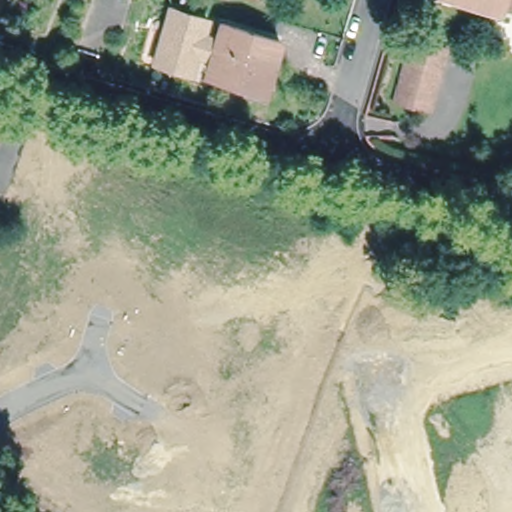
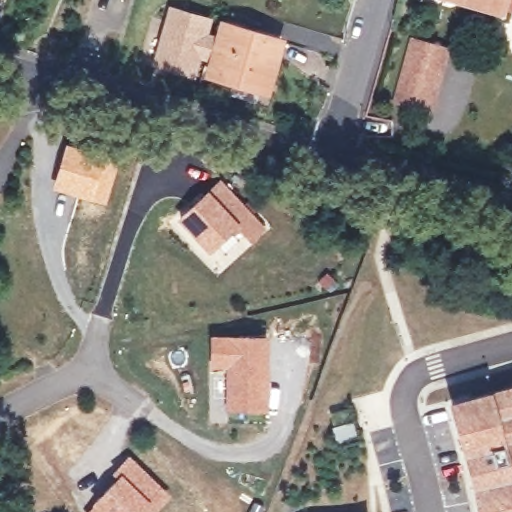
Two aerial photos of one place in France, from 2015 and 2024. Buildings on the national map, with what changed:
unchanged [(497,1),(493,0),(497,0),(497,1)]
unchanged [(512,3),(499,0),(512,0),(512,3)]
new [(214,16),(209,33),(217,33),(220,18),(286,37),(271,95),(204,76),(208,60),(200,58),(195,77),(153,66),(170,5),(214,16)]
demolished [(210,68),(223,23),(282,41),(267,90),(223,77),(224,72),(210,68)]
unchanged [(426,109),(395,101),(410,42),(441,50),(426,109)]
new [(65,141),(118,150),(106,202),(52,187),(65,141)]
new [(177,218),(209,190),(222,178),(266,226),(252,241),(237,226),(210,252),(177,218)]
new [(270,408),(227,409),(226,368),(212,368),(212,335),(269,335),(270,408)]
new [(512,389),(512,512),(481,512),(478,495),(467,455),(453,405),(512,389)]
new [(155,510),(148,504),(140,512),(87,512),(94,506),(93,503),(118,478),(112,472),(131,455),(171,494),(155,510)]

